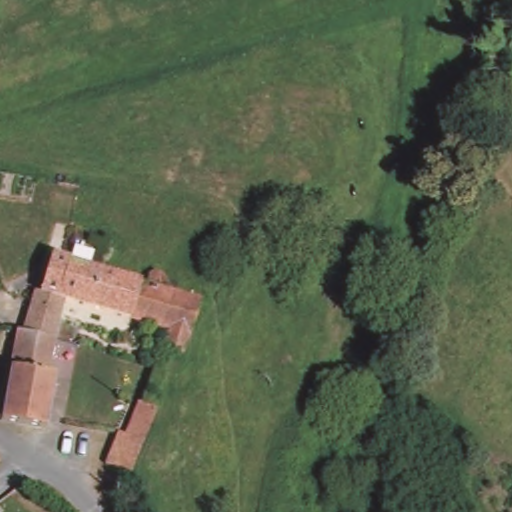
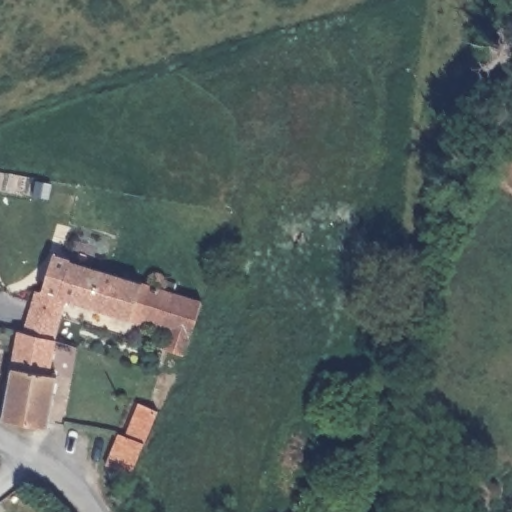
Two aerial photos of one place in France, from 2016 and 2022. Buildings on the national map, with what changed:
unchanged [(166,345),(169,332),(156,328),(156,324),(66,299),(66,307),(63,317),(60,342),(26,334),(34,300),(36,291),(42,293),(53,257),(59,259),(79,265),(95,269),(145,282),(149,283),(155,285),(161,274),(167,273),(174,278),(173,289),(184,292),(192,294),(204,298),(188,352),(166,345)]
unchanged [(49,374),(57,376),(47,427),(0,419),(10,368),(17,332),(26,334),(60,342),(49,374)]
unchanged [(116,439),(126,440),(134,409),(152,412),(134,476),(106,470),(116,439)]

